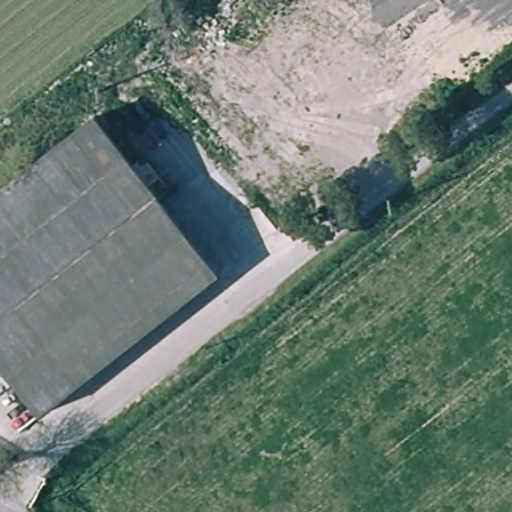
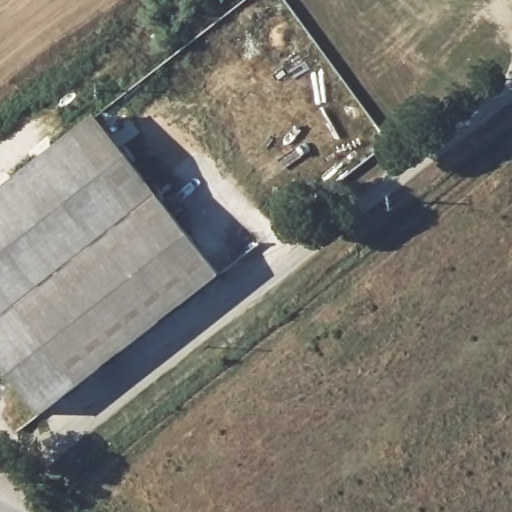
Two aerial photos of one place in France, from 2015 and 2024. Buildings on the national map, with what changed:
unchanged [(220,280),(43,420),(0,367),(0,191),(90,120),(220,280)]

